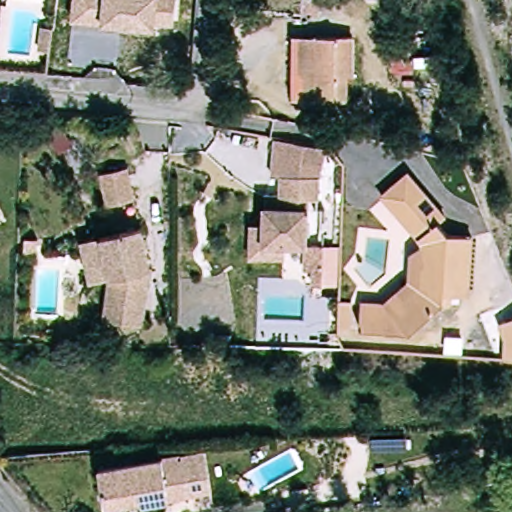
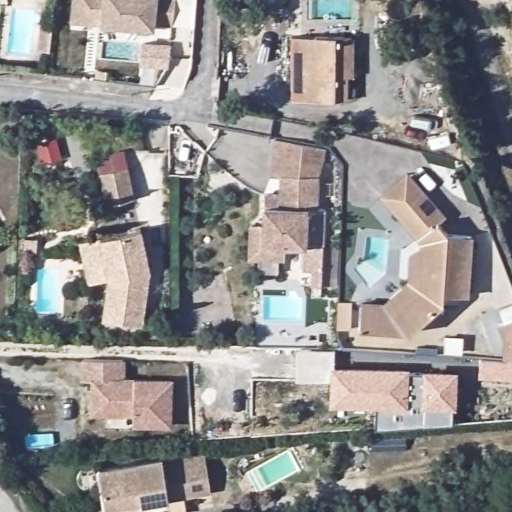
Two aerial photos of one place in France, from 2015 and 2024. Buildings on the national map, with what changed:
unchanged [(157,23),(106,19),(76,17),(77,0),(178,0),(177,19),(157,18),(157,23)]
unchanged [(56,52),(40,50),(42,26),(58,28),(56,52)]
unchanged [(304,63),(304,38),(315,38),(354,38),(354,63),(348,62),(348,101),(303,100),(304,63)]
unchanged [(246,258),(247,224),(262,224),(263,206),(264,197),(276,198),(278,172),(269,172),(274,135),(324,146),(318,176),(316,199),(307,199),(304,244),(284,243),(284,259),(246,258)]
unchanged [(117,206),(111,174),(139,169),(145,201),(117,206)]
unchanged [(420,248),(396,218),(382,199),(408,178),(423,197),(444,223),(435,229),(442,238),(470,240),(470,301),(445,301),(445,309),(411,335),(393,314),(419,291),(419,260),(420,248)]
unchanged [(144,321),(110,316),(115,275),(108,234),(145,226),(153,270),(144,321)]
unchanged [(312,288),(313,271),(303,271),(304,244),(325,245),(324,288),(312,288)]
unchanged [(393,314),(411,335),(360,334),(360,307),(380,308),(405,286),(407,260),(419,260),(419,291),(393,314)]
unchanged [(512,359),(511,358),(499,325),(512,320),(512,359)]
new [(502,335),(511,358),(512,358),(512,379),(477,374),(480,355),(500,357),(502,335)]
new [(333,347),(333,364),(409,366),(409,372),(421,372),(422,369),(457,370),(455,406),(452,406),(450,420),(374,426),(375,405),(328,404),(330,378),(293,378),(294,347),(333,347)]
new [(172,428),(132,426),(132,415),(90,415),(91,379),(81,379),(81,359),(125,360),(125,378),(173,380),(172,428)]
unchanged [(191,499),(112,512),(108,512),(102,472),(184,458),(191,499)]

